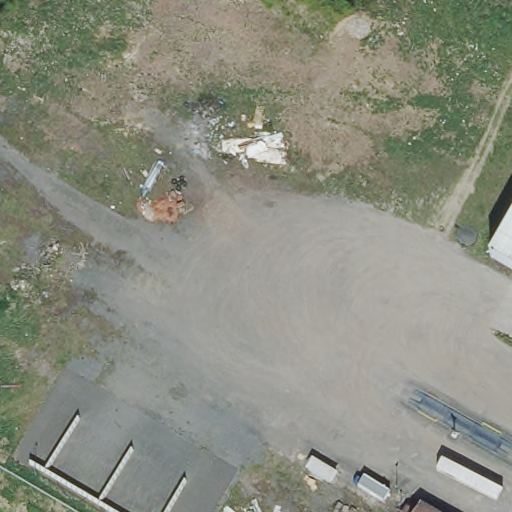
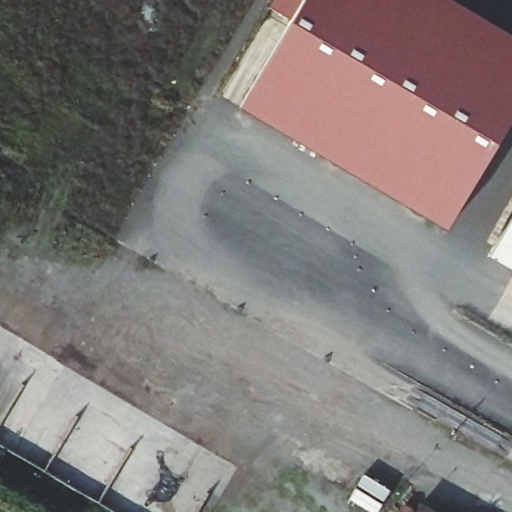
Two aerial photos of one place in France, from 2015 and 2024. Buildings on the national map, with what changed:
new [(292,20),(270,8),(274,0),(303,0),(304,0),(453,0),(512,34),(512,118),(447,228),(241,107),(292,20)]
unchanged [(512,206),(512,262),(488,248),(512,206)]
unchanged [(435,512),(412,512),(418,502),(435,512)]

